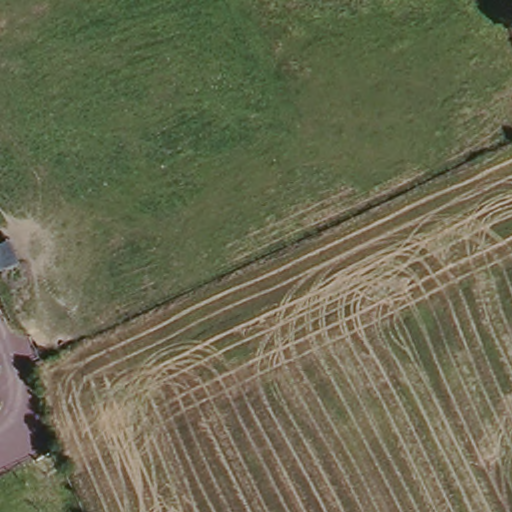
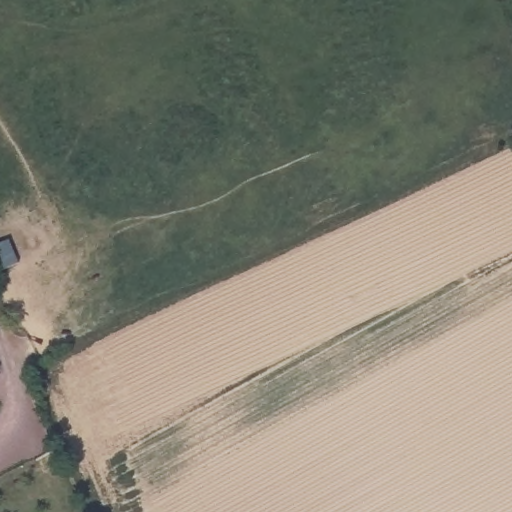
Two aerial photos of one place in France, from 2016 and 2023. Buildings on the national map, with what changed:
unchanged [(0,269),(0,238),(6,235),(19,262),(0,269)]

